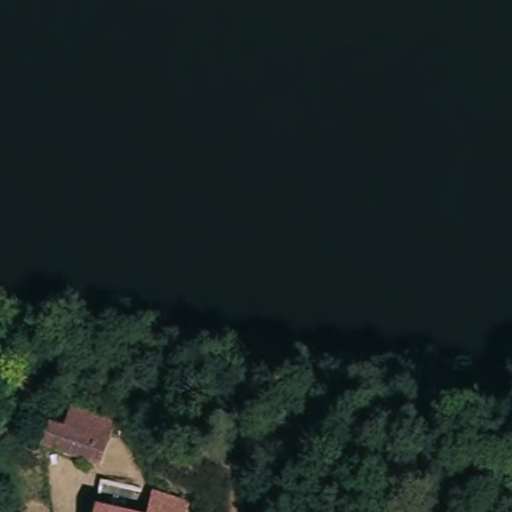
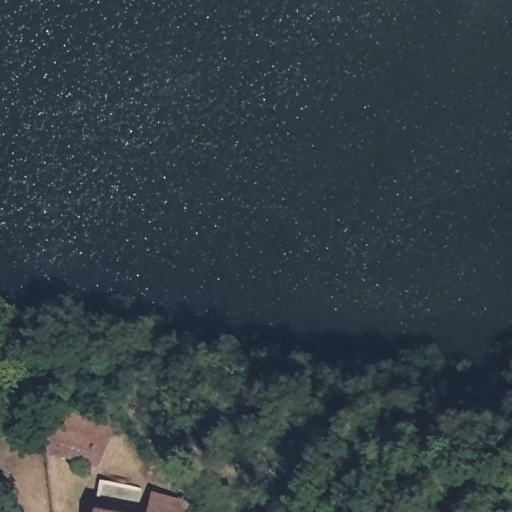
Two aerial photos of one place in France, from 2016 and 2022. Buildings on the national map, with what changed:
unchanged [(22,372),(56,393),(57,393),(55,397),(50,406),(15,384),(22,372)]
unchanged [(41,451),(48,426),(60,430),(64,431),(71,407),(107,420),(116,423),(101,470),(41,451)]
unchanged [(106,473),(195,495),(191,512),(99,512),(106,473)]

